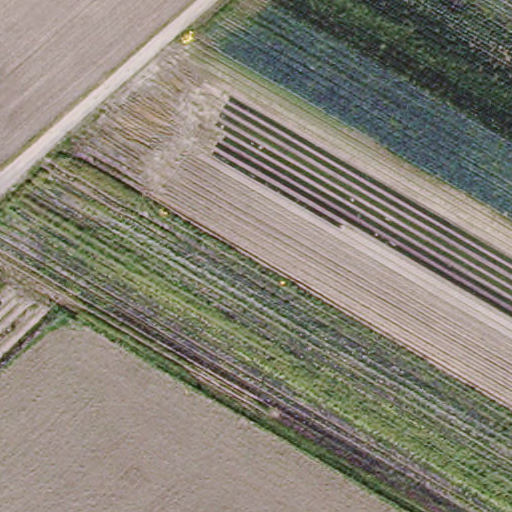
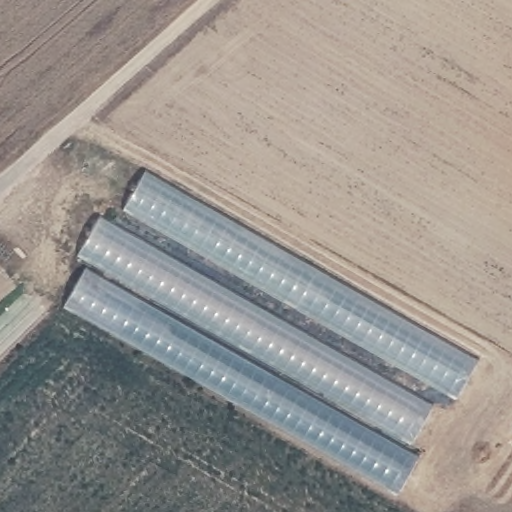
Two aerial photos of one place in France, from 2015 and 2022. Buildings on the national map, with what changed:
new [(145,171),(476,360),(452,401),(122,211),(145,171)]
new [(99,216),(431,404),(407,445),(76,257),(99,216)]
new [(407,445),(403,451),(419,459),(397,494),(64,307),(89,264),(407,445)]
new [(2,297),(0,298),(0,295),(2,297)]

